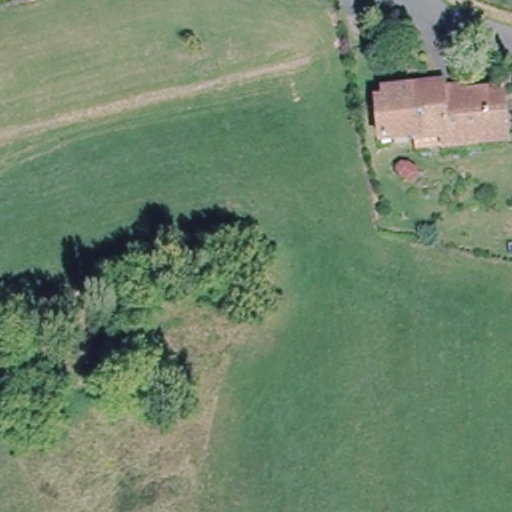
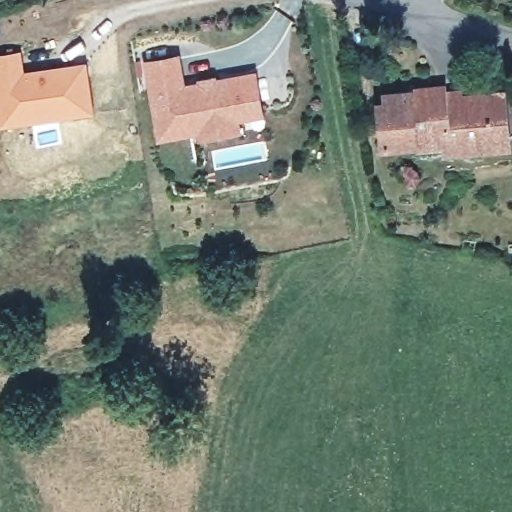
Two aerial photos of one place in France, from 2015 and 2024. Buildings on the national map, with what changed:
new [(24,71),(87,63),(95,114),(0,127),(0,124),(0,55),(22,51),(24,71)]
new [(185,83),(198,80),(197,78),(216,74),(217,77),(258,70),(266,115),(241,119),(243,130),(198,139),(197,132),(158,140),(143,61),(180,55),(185,83)]
unchanged [(398,91),(451,82),(451,98),(507,91),(512,127),(512,138),(487,141),(488,146),(478,148),(473,143),(453,147),(452,142),(420,148),(419,140),(405,143),(393,145),(388,93),(398,91)]

